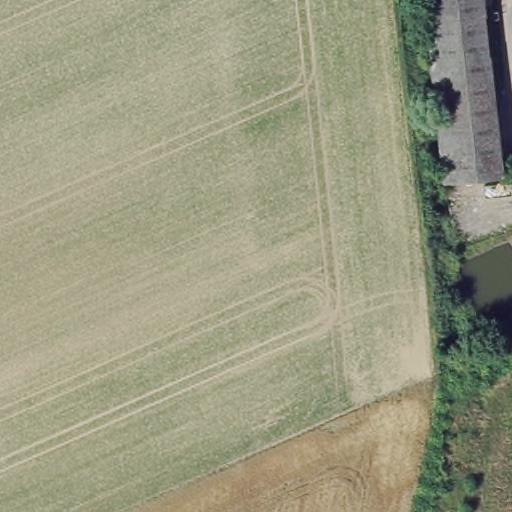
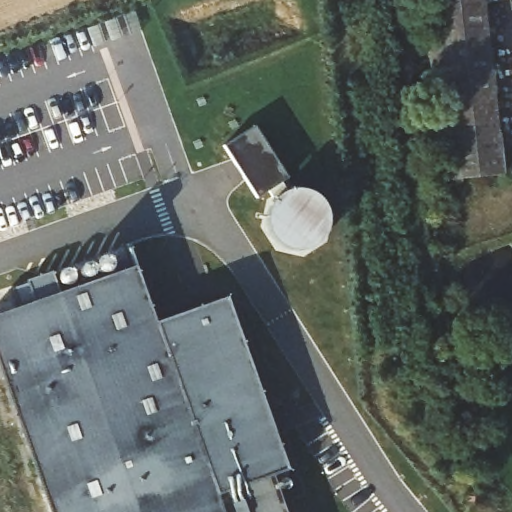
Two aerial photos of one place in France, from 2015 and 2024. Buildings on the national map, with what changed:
unchanged [(495,170),(435,174),(421,0),(482,0),(495,170)]
new [(225,145),(253,127),(287,178),(282,181),(287,192),(284,192),(275,199),(269,189),(257,196),(225,145)]
demolished [(464,180),(465,195),(437,197),(435,181),(464,180)]
new [(267,475),(280,512),(46,512),(0,380),(0,314),(132,268),(210,495),(267,475)]
new [(15,308),(10,290),(30,283),(27,280),(52,272),(59,293),(15,308)]
new [(225,298),(286,470),(267,475),(210,495),(152,325),(225,298)]

